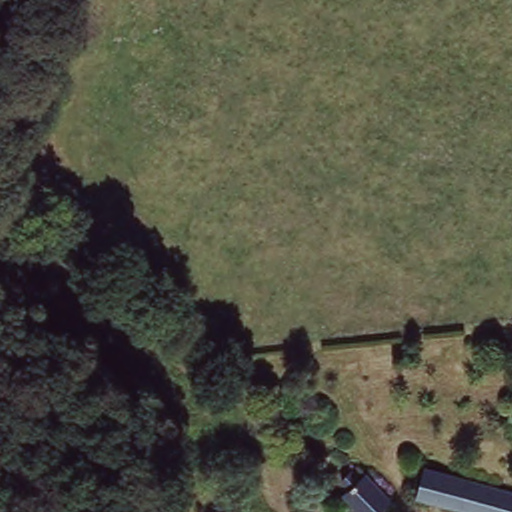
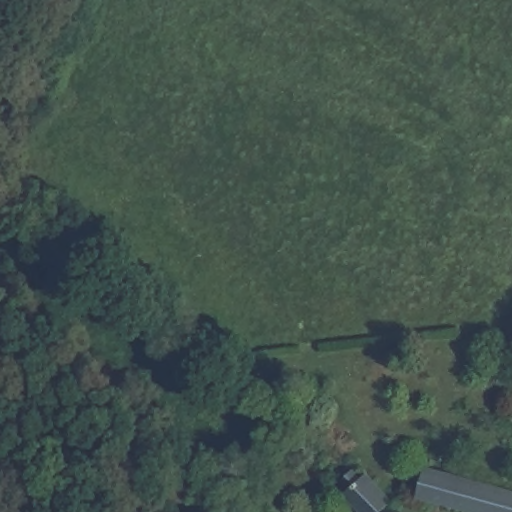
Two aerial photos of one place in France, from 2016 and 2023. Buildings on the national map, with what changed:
unchanged [(412,495),(424,465),(512,490),(512,512),(465,512),(412,495)]
unchanged [(365,473),(391,500),(380,512),(358,512),(342,495),(365,473)]

